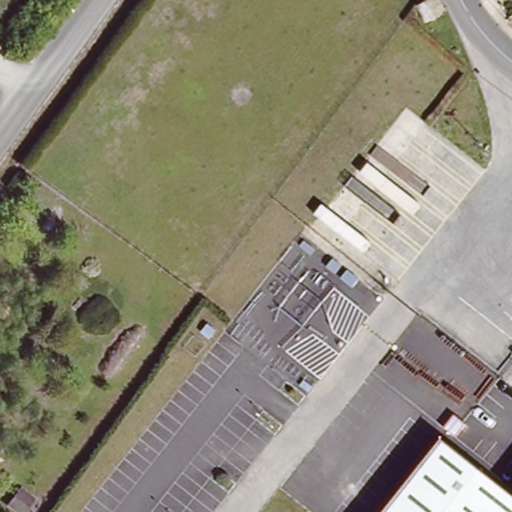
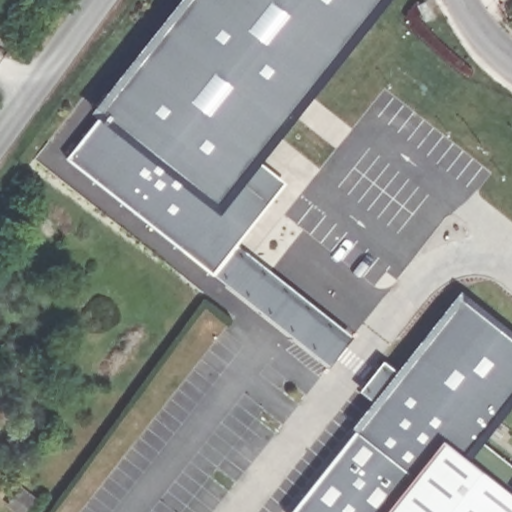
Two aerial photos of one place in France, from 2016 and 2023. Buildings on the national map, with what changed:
new [(215,276),(67,160),(102,118),(95,113),(184,0),(390,0),(260,163),(287,184),(237,247),(354,337),(330,367),(215,276)]
new [(389,512),(293,512),(354,434),(355,428),(374,402),(360,392),(385,362),(397,370),(460,294),(512,334),(512,407),(483,444),(512,467),(512,477),(503,489),(444,442),(389,512)]
unchanged [(389,512),(444,442),(512,496),(512,512),(389,512)]

